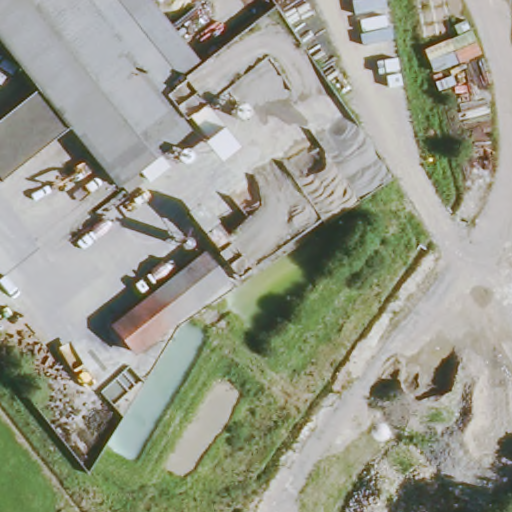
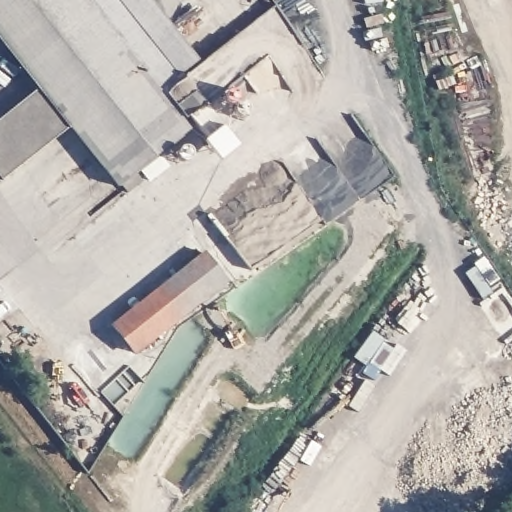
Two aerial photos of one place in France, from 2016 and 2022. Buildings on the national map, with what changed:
unchanged [(133,173),(139,182),(129,192),(121,184),(115,187),(67,127),(38,91),(0,43),(0,0),(82,0),(156,94),(186,132),(133,173)]
unchanged [(143,0),(195,65),(156,94),(82,0),(143,0)]
unchanged [(0,180),(0,121),(38,91),(67,127),(0,180)]
unchanged [(253,275),(244,282),(195,220),(207,212),(253,275)]
unchanged [(137,355),(115,327),(205,256),(227,282),(137,355)]

